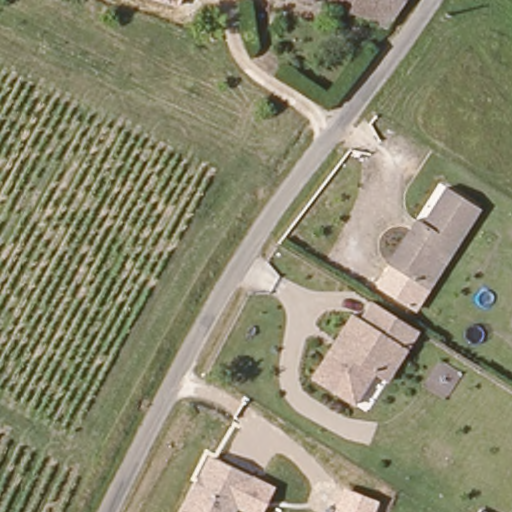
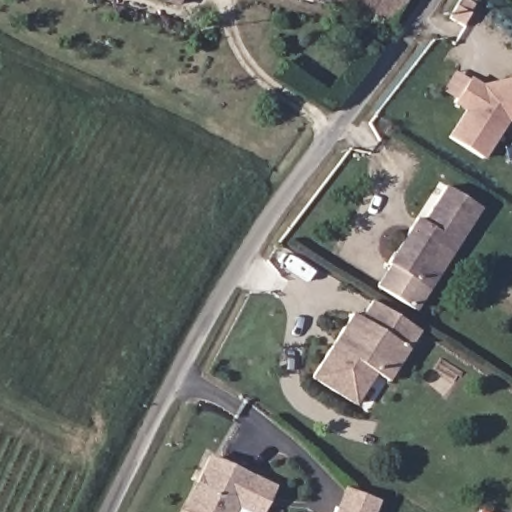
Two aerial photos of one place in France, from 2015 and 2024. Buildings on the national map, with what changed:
unchanged [(178,5),(164,0),(180,0),(178,5)]
unchanged [(312,2),(304,0),(313,0),(312,2)]
unchanged [(376,27),(379,20),(328,0),(401,0),(382,31),(376,27)]
new [(483,159),(448,137),(466,112),(455,101),(441,92),(455,70),(481,86),(512,78),(512,122),(506,123),(483,159)]
unchanged [(415,283),(385,264),(414,219),(420,223),(444,187),(477,209),(447,256),(425,290),(415,283)]
unchanged [(373,371),(353,402),(311,374),(352,312),(361,317),(372,301),(419,331),(406,348),(385,379),(373,371)]
unchanged [(251,475),(233,512),(180,512),(208,454),(251,475)]
unchanged [(371,512),(343,512),(348,500),(373,507),(371,512)]

